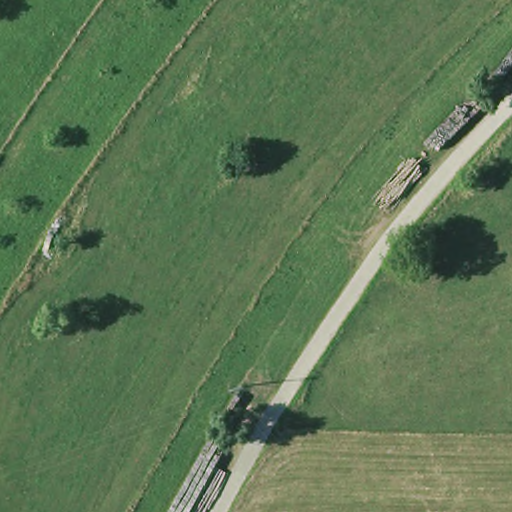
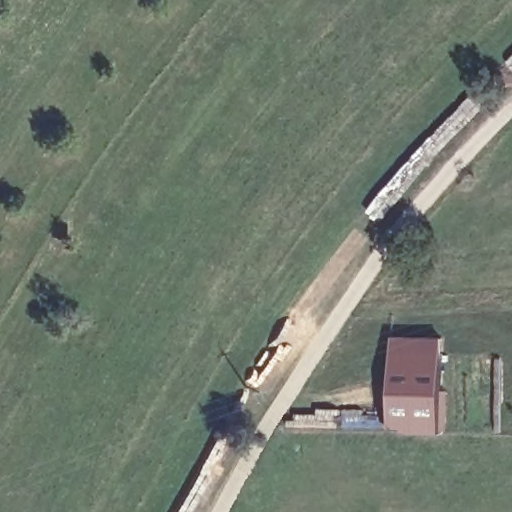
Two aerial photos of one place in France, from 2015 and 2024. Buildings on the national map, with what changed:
new [(444,339),(448,435),(393,432),(393,338),(444,339)]

